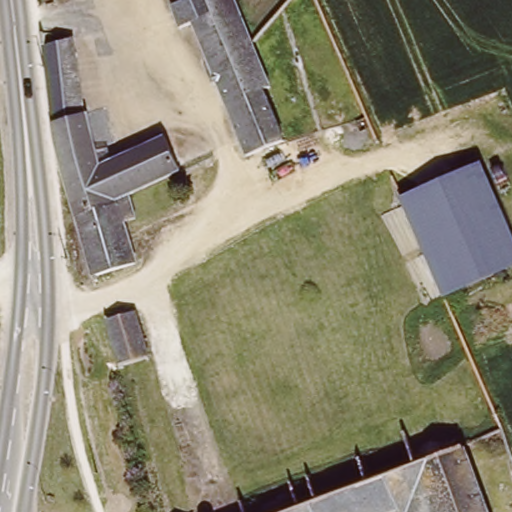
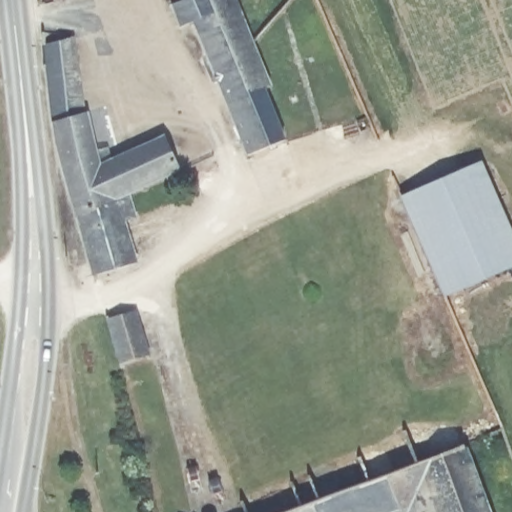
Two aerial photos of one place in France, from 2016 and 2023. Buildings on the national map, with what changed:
unchanged [(265,86),(257,89),(278,140),(242,157),(235,141),(188,23),(175,28),(170,15),(166,5),(179,0),(230,0),(247,42),(265,86)]
unchanged [(110,165),(165,141),(180,175),(180,176),(128,200),(136,224),(123,227),(81,240),(62,172),(52,126),(42,50),(72,42),(84,119),(87,117),(97,156),(107,154),(110,165)]
unchanged [(495,197),(417,230),(403,199),(480,165),(495,197)]
unchanged [(417,230),(495,197),(512,236),(512,266),(445,295),(417,230)]
unchanged [(93,281),(81,240),(123,227),(135,269),(93,281)]
unchanged [(120,366),(106,320),(136,312),(150,357),(120,366)]
unchanged [(395,510),(392,512),(285,512),(463,445),(488,512),(396,512),(395,510)]

